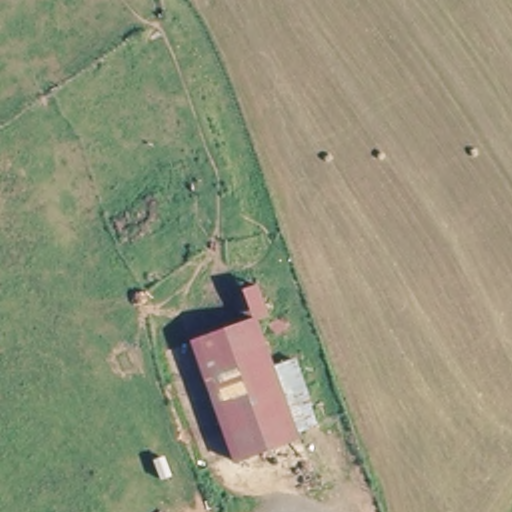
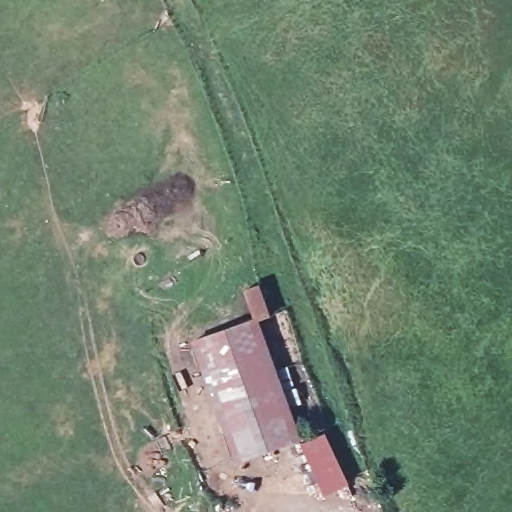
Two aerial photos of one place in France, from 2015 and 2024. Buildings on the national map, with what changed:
unchanged [(260,283),(270,312),(260,315),(250,287),(260,283)]
unchanged [(240,455),(197,339),(260,315),(303,435),(240,455)]
new [(348,483),(325,496),(309,461),(303,464),(295,445),(326,432),(348,483)]

